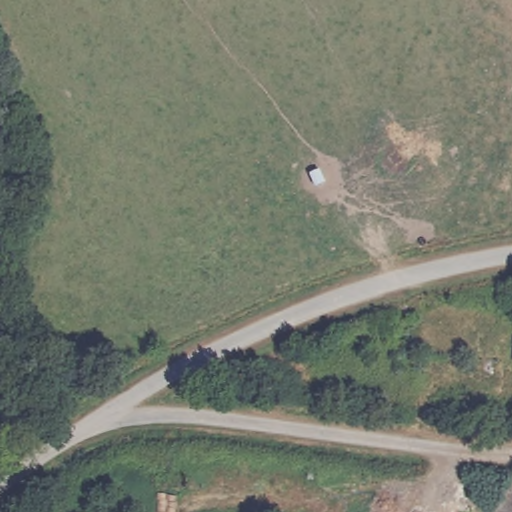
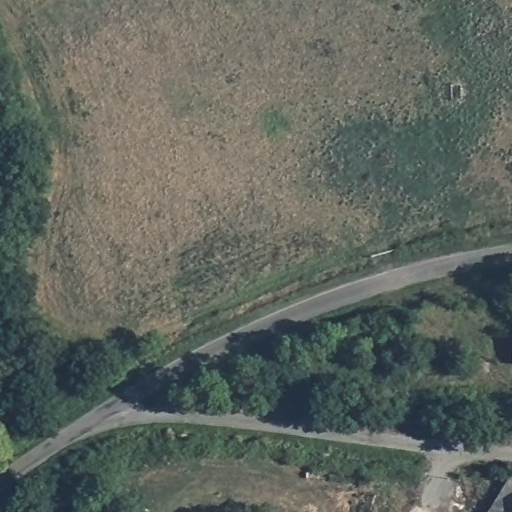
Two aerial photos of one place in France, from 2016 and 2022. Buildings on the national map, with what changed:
unchanged [(512,479),(512,512),(492,512),(512,479)]

